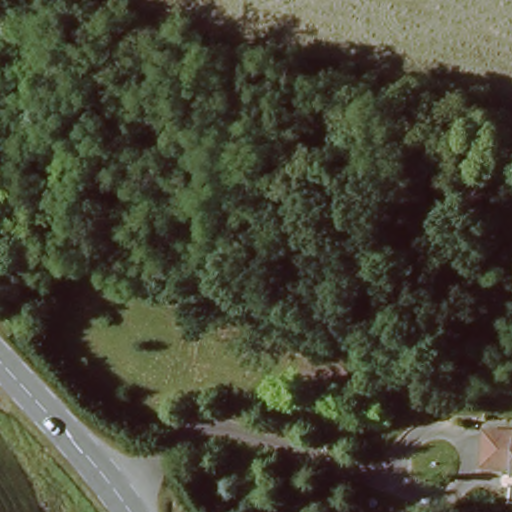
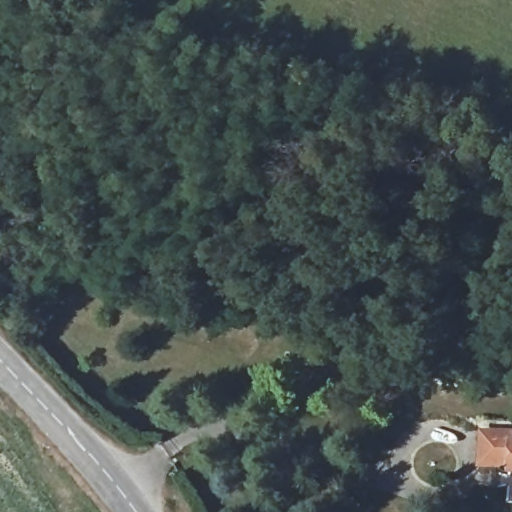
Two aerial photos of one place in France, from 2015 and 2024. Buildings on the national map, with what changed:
unchanged [(511,438),(512,439),(512,473),(510,472),(510,469),(476,467),(477,434),(511,434),(511,438)]

